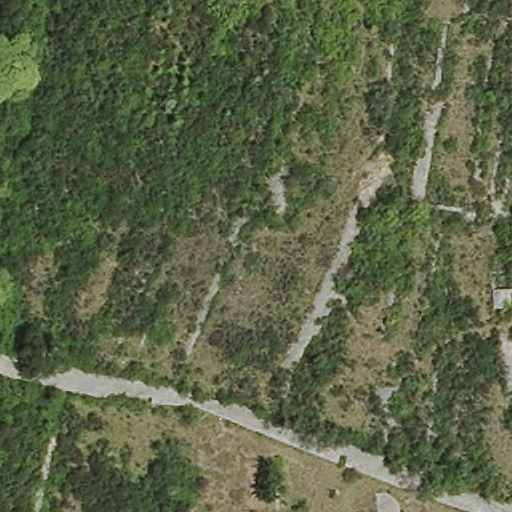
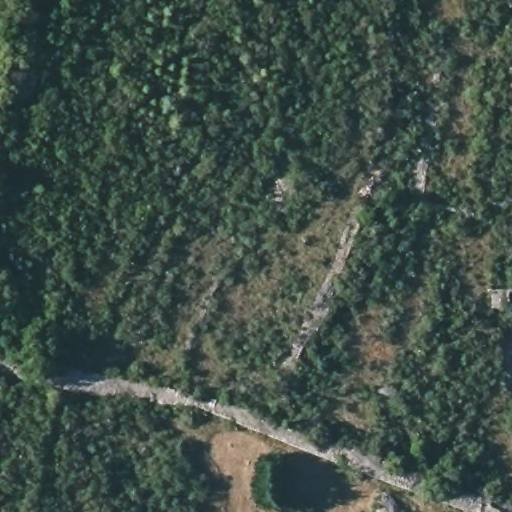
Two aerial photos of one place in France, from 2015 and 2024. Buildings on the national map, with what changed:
unchanged [(492,291),(511,291),(512,298),(512,309),(494,311),(492,291)]

